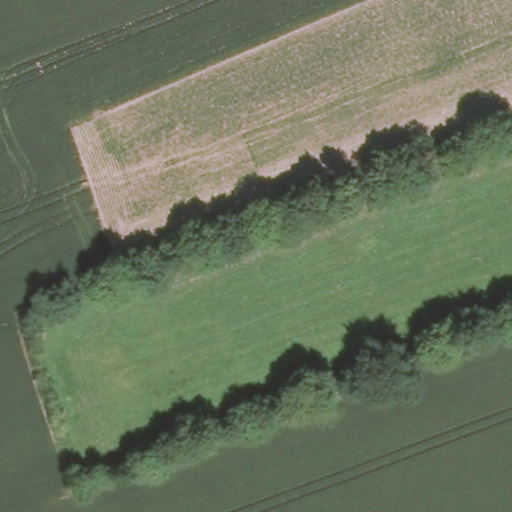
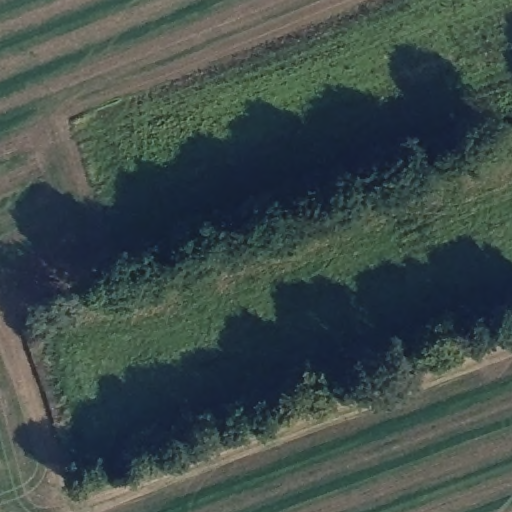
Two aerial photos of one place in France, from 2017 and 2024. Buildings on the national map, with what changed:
[]

